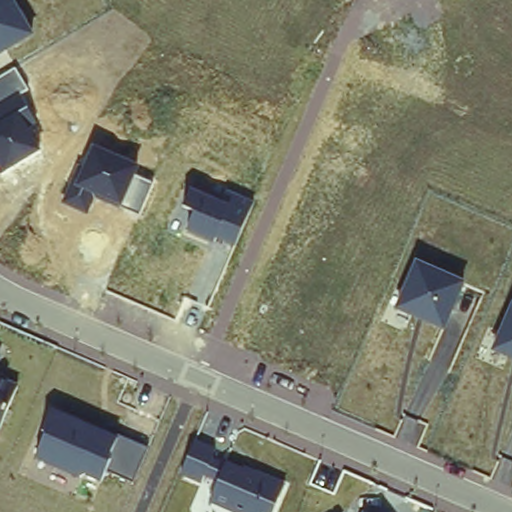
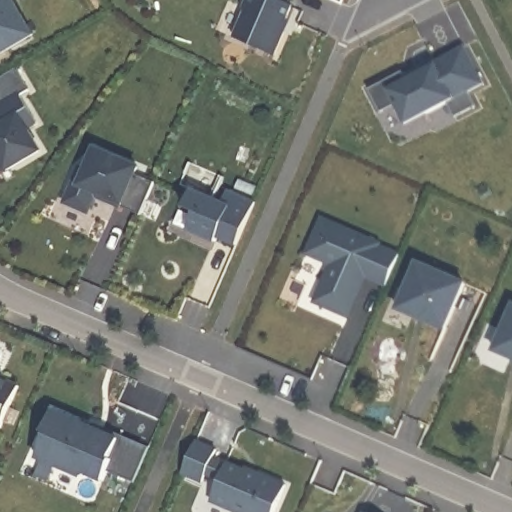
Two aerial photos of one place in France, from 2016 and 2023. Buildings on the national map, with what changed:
unchanged [(0,55),(0,0),(15,0),(34,34),(0,55)]
new [(292,5),(296,6),(285,32),(288,34),(278,56),(238,39),(249,15),(247,10),(252,0),(293,0),(292,5)]
new [(467,96),(474,110),(453,121),(446,106),(424,117),(423,114),(402,125),(394,108),(379,116),(367,93),(401,75),(406,83),(403,79),(420,70),(433,64),(434,65),(463,50),(482,88),(467,96)]
unchanged [(1,176),(0,175),(0,80),(16,70),(28,90),(21,95),(29,109),(20,115),(41,152),(1,176)]
unchanged [(139,216),(94,197),(88,214),(64,205),(74,185),(92,145),(139,167),(135,177),(153,185),(139,216)]
unchanged [(236,250),(186,231),(194,210),(182,205),(193,179),(255,202),(236,250)]
new [(377,246),(375,250),(395,259),(382,288),(363,279),(344,320),(311,305),(328,267),(304,256),(319,221),(377,246)]
unchanged [(446,328),(397,309),(416,261),(466,283),(446,328)]
unchanged [(511,300),(512,300),(512,360),(490,351),(511,300)]
unchanged [(18,385),(0,424),(0,378),(18,385)]
unchanged [(134,480),(107,468),(102,480),(83,472),(79,478),(35,460),(51,410),(120,437),(147,446),(134,480)]
unchanged [(233,512),(210,501),(218,483),(203,477),(200,485),(181,477),(196,435),(218,446),(215,453),(285,485),(274,512),(233,512)]
unchanged [(369,512),(361,512),(363,509),(369,512)]

